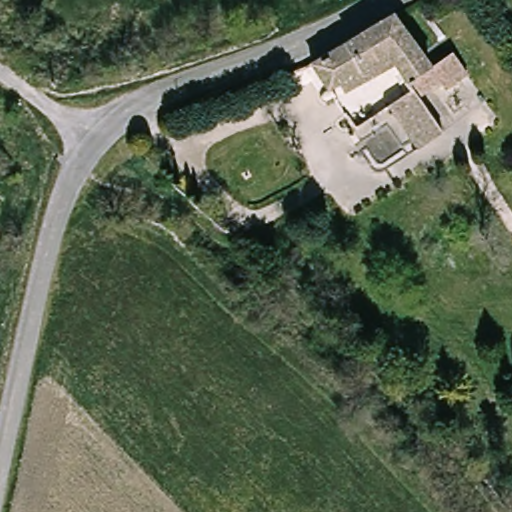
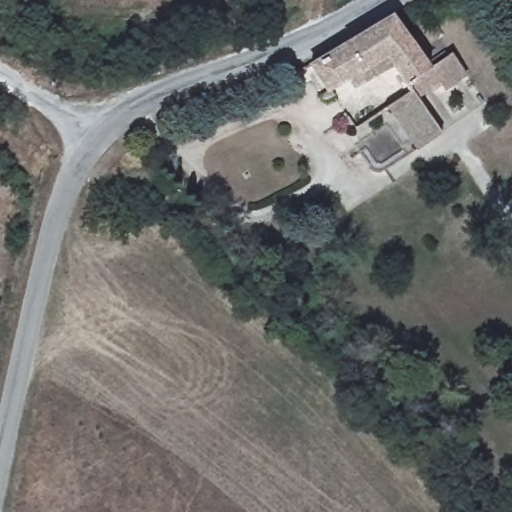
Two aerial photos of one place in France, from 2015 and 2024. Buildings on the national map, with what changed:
unchanged [(444,60),(460,82),(439,97),(430,86),(414,103),(440,144),(414,162),(384,115),(352,135),(307,69),(385,16),(391,22),(423,73),(444,60)]

